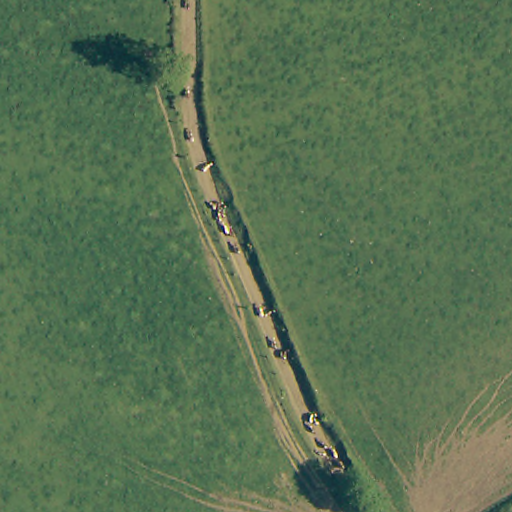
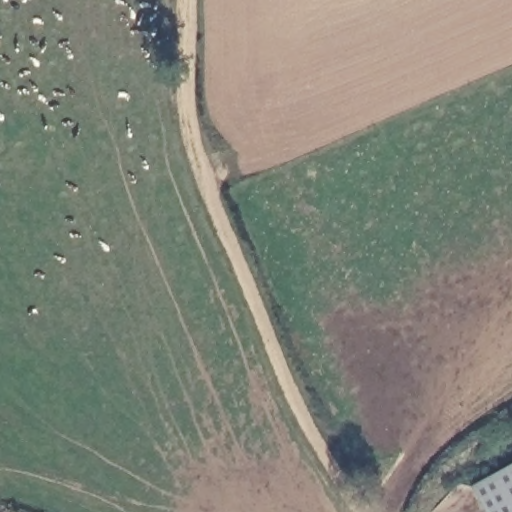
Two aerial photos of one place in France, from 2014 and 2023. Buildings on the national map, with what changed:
new [(471,486),(512,463),(512,512),(482,512),(471,486)]

